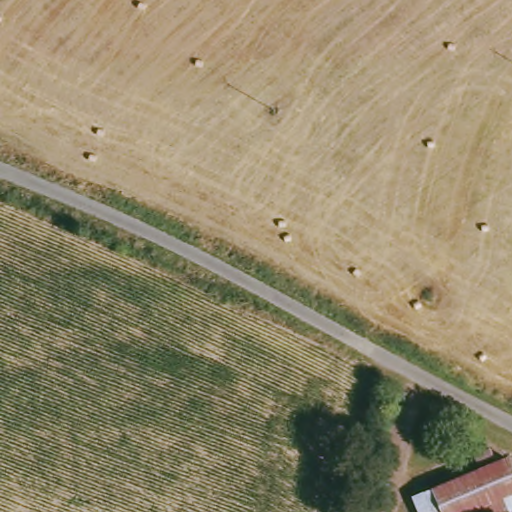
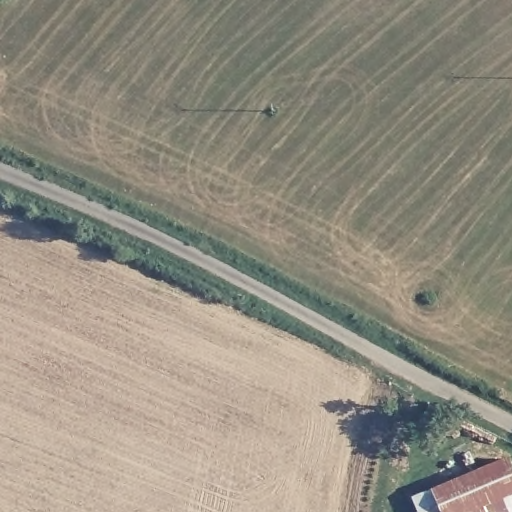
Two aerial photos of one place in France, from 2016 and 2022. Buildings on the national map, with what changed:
unchanged [(458,512),(457,511),(456,512),(418,512),(410,492),(508,452),(512,462),(512,509),(504,512),(458,512)]

